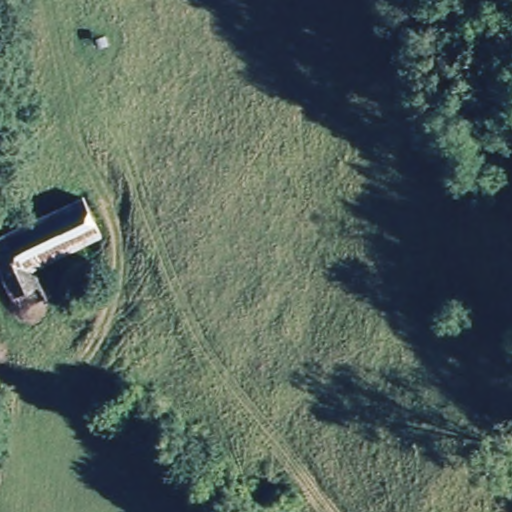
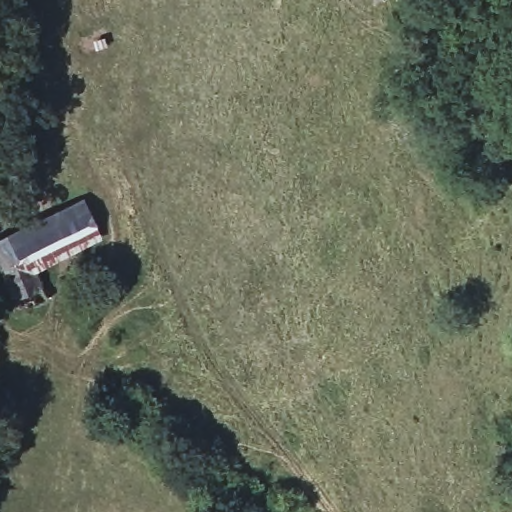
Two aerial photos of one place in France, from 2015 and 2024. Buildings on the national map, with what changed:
unchanged [(101,239),(32,270),(45,297),(22,308),(0,260),(0,238),(82,200),(101,239)]

